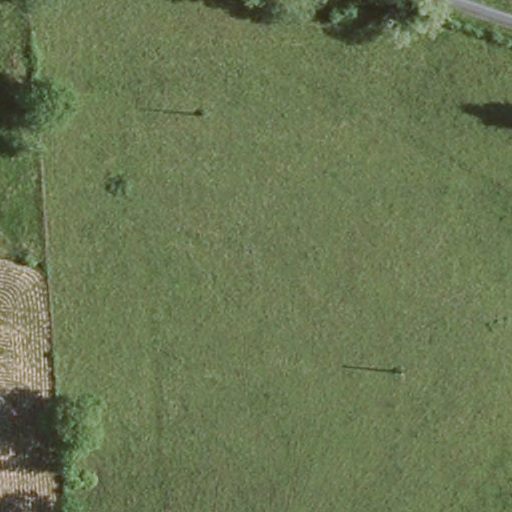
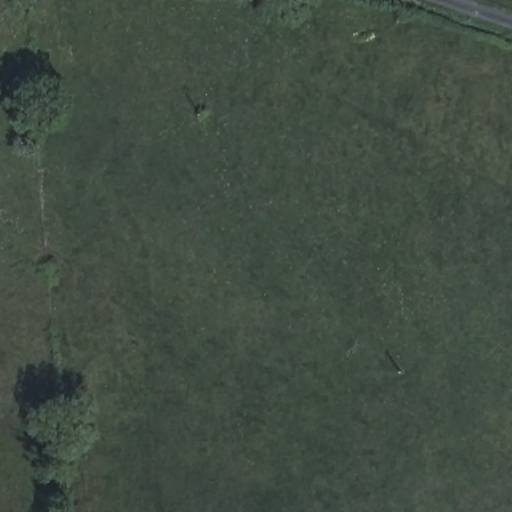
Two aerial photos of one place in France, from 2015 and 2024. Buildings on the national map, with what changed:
[]

